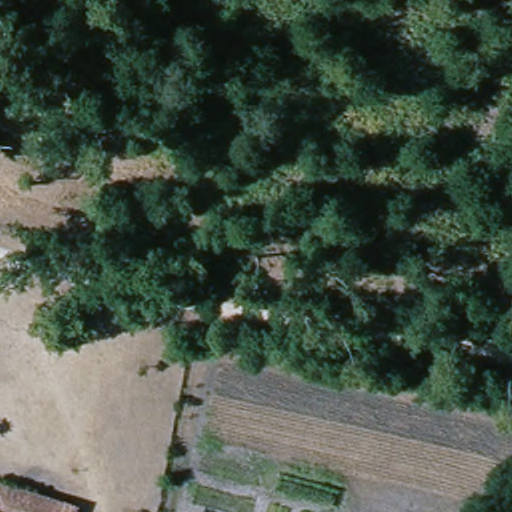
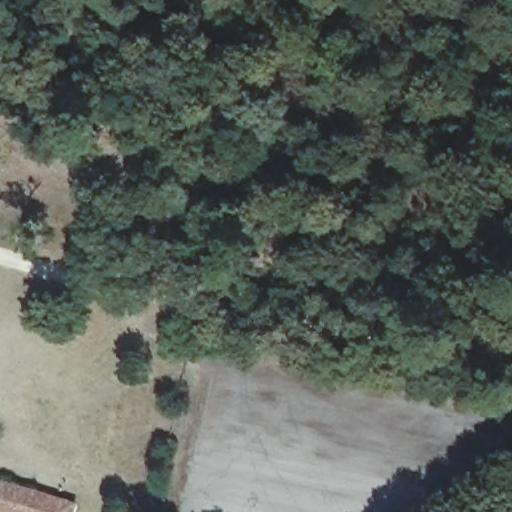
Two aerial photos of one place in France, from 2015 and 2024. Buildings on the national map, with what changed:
unchanged [(70,502),(67,512),(0,512),(0,484),(70,502)]

